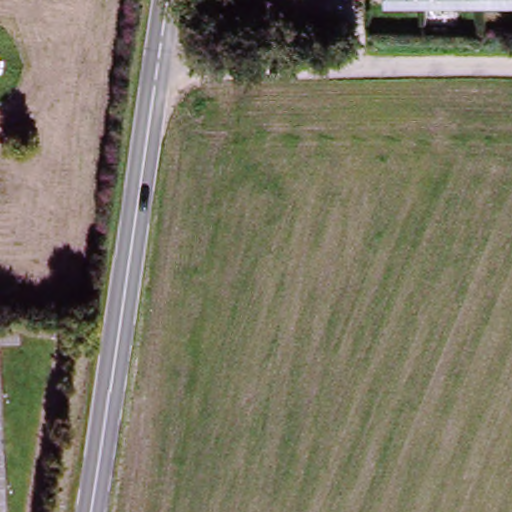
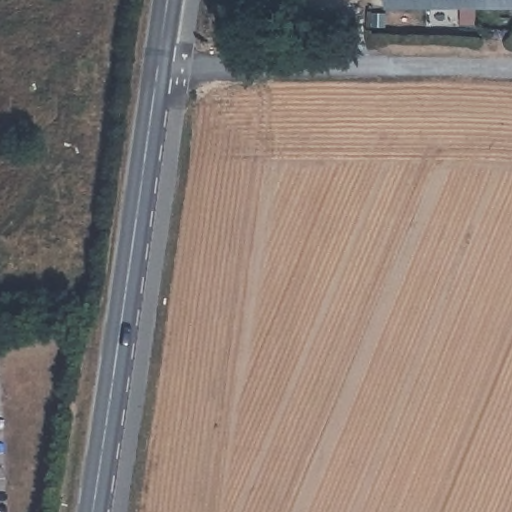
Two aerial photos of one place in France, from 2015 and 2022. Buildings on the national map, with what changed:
unchanged [(390,0),(512,0),(512,9),(390,9),(390,0)]

